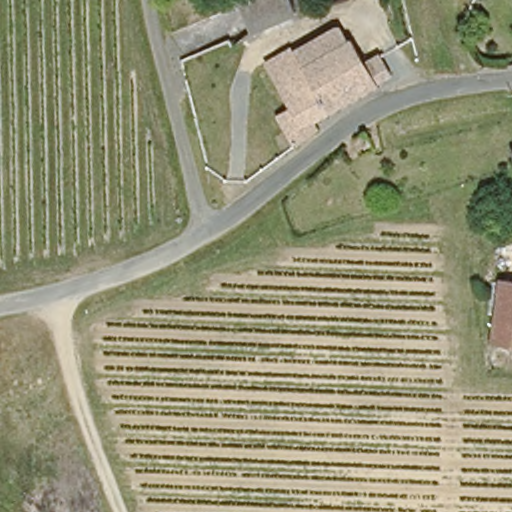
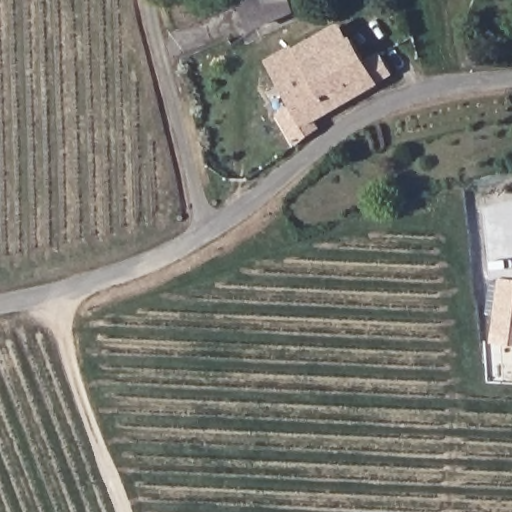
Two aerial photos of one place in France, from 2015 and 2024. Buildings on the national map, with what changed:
unchanged [(297,11),(257,30),(245,4),(254,0),(291,0),(297,11)]
unchanged [(265,68),(265,67),(287,53),(288,55),(290,57),(337,29),(346,42),(304,67),(300,59),(270,76),(265,68)]
unchanged [(347,41),(362,64),(377,55),(377,54),(389,74),(383,77),(374,83),(313,120),(319,132),(295,149),(276,117),(289,108),(270,76),(300,59),(304,67),(346,42),(347,41)]
unchanged [(494,340),(505,281),(512,282),(512,343),(494,340)]

